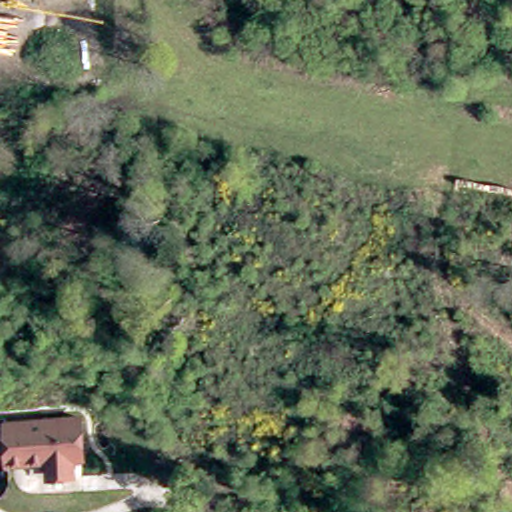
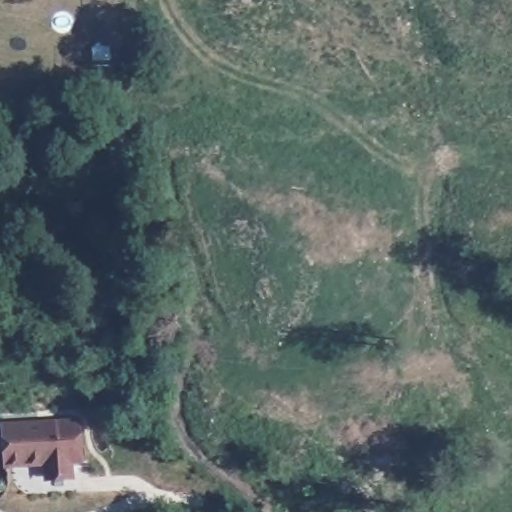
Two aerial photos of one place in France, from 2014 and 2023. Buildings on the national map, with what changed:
unchanged [(0,424),(71,416),(75,456),(65,457),(67,470),(42,472),(40,460),(1,464),(0,455),(0,424)]

